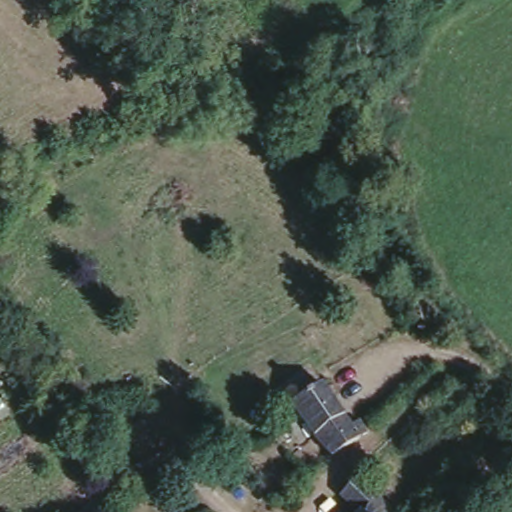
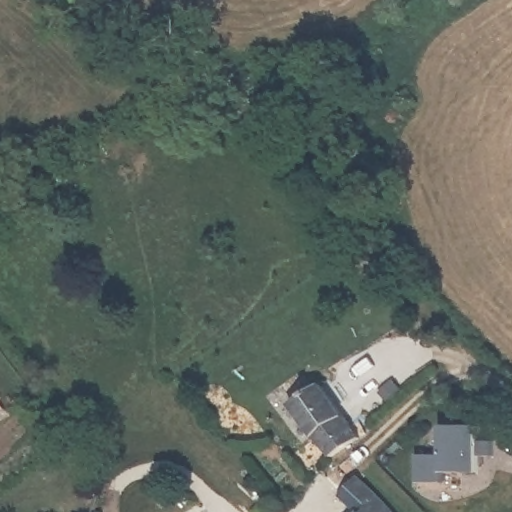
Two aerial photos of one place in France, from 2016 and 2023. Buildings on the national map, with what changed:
unchanged [(295,413),(289,406),(319,383),(353,421),(363,416),(374,429),(336,460),(295,413)]
new [(440,450),(442,425),(480,426),(495,429),(495,455),(479,454),(478,471),(444,472),(443,482),(416,481),(417,452),(440,450)]
unchanged [(335,498),(339,494),(354,479),(392,512),(351,512),(335,498)]

